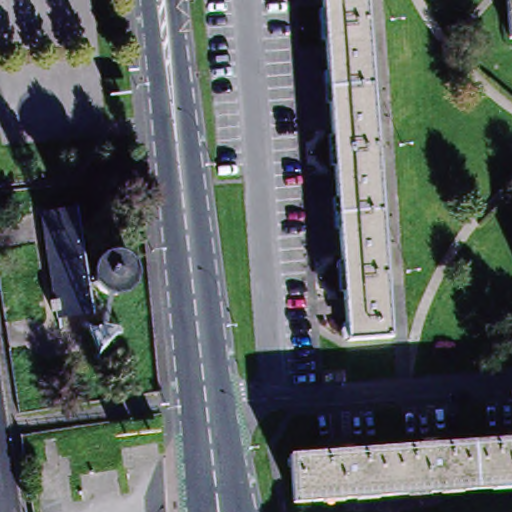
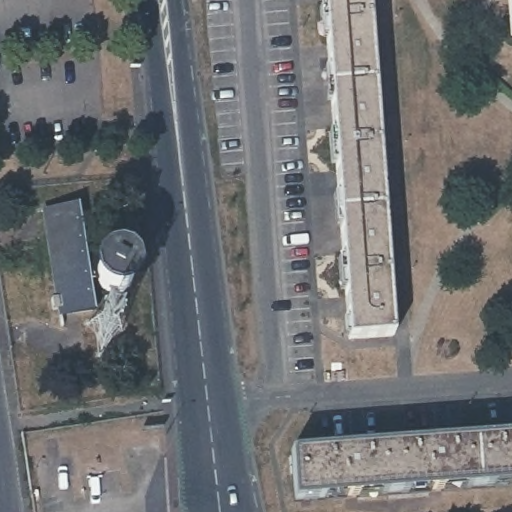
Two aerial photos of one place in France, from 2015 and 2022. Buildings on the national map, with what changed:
unchanged [(322,0),(366,0),(390,341),(347,343),(322,0)]
unchanged [(512,40),(510,40),(507,0),(512,0),(512,40)]
unchanged [(75,211),(83,261),(101,258),(96,265),(95,273),(85,275),(90,312),(60,317),(44,215),(75,211)]
unchanged [(96,265),(101,258),(102,261),(103,260),(105,259),(107,258),(109,257),(110,257),(112,257),(114,257),(116,257),(118,257),(120,258),(122,259),(124,260),(125,261),(127,262),(128,264),(129,266),(130,267),(131,270),(131,272),(132,273),(132,276),(131,277),(131,280),(130,281),(130,283),(129,285),(127,287),(126,288),(125,289),(123,291),(121,292),(119,292),(117,292),(115,293),(113,293),(111,293),(109,292),(108,292),(106,291),(104,290),(102,289),(101,288),(99,287),(98,285),(97,283),(96,281),(96,279),(95,277),(95,273),(96,265)]
unchanged [(340,451),(341,447),(353,446),(354,451),(425,446),(425,440),(436,440),(437,444),(510,439),(509,435),(512,434),(512,488),(294,504),(291,454),(340,451)]

